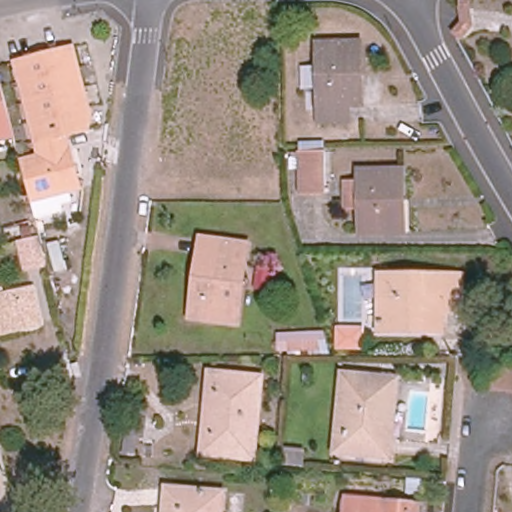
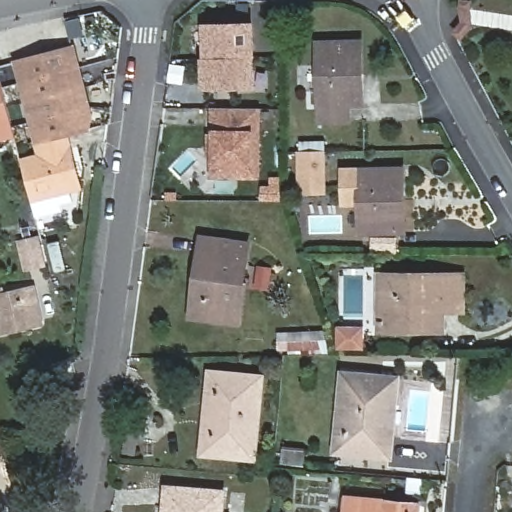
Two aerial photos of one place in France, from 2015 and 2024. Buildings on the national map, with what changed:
new [(201,22),(255,22),(256,56),(202,56),(201,22)]
unchanged [(318,42),(361,42),(362,73),(362,105),(357,105),(350,105),(350,122),(320,122),(319,91),(318,64),(318,42)]
unchanged [(89,130),(67,135),(80,189),(32,201),(22,161),(40,155),(16,62),(74,47),(91,114),(89,130)]
new [(256,56),(256,87),(203,89),(202,56),(256,56)]
unchanged [(15,136),(0,139),(0,82),(1,82),(10,117),(15,136)]
new [(260,179),(209,177),(210,107),(261,107),(260,179)]
unchanged [(299,195),(297,151),(300,151),(300,141),(325,141),(326,151),(327,195),(299,195)]
unchanged [(402,169),(403,201),(397,201),(398,232),(361,234),(360,209),(345,209),(345,182),(360,182),(360,170),(402,169)]
unchanged [(44,266),(26,270),(19,241),(37,237),(44,266)]
unchanged [(237,322),(193,317),(203,240),(246,246),(237,322)]
unchanged [(462,312),(443,312),(443,332),(380,331),(380,275),(463,275),(462,312)]
unchanged [(27,327),(0,333),(0,290),(2,289),(4,295),(34,288),(41,318),(42,324),(27,327)]
unchanged [(327,351),(279,351),(279,333),(321,332),(327,351)]
unchanged [(253,457),(204,453),(212,374),(261,378),(253,457)]
unchanged [(389,456),(337,451),(343,375),(397,379),(395,400),(391,437),(389,456)]
unchanged [(302,466),(282,464),(283,447),(304,449),(302,466)]
unchanged [(227,493),(225,512),(171,512),(173,489),(227,493)]
unchanged [(419,505),(418,512),(346,512),(347,497),(419,505)]

